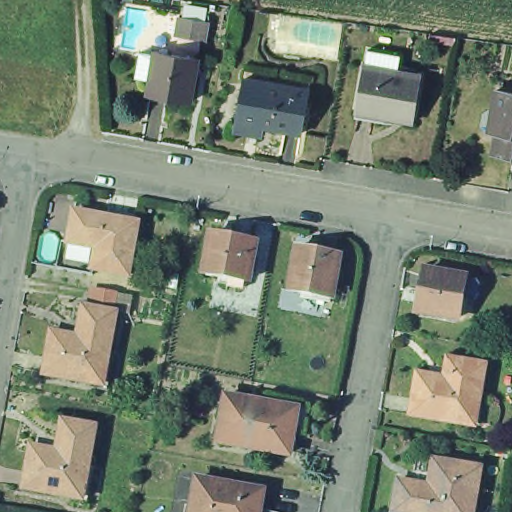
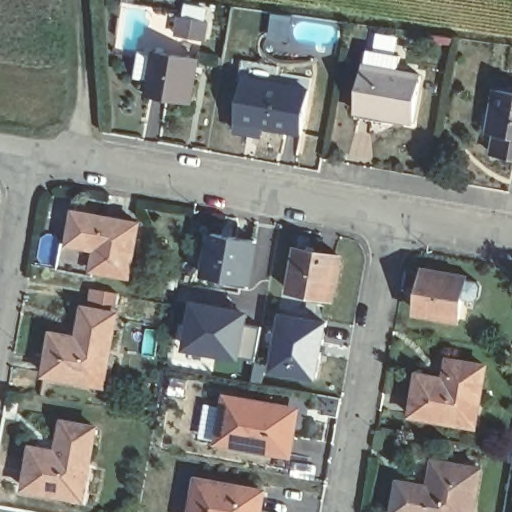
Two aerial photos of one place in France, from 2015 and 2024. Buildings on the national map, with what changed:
unchanged [(211,25),(207,43),(177,37),(182,19),(211,25)]
unchanged [(196,104),(153,96),(155,81),(141,78),(145,53),(161,56),(162,53),(204,61),(196,104)]
unchanged [(369,63),(401,69),(399,84),(421,88),(412,136),(355,125),(365,78),(366,78),(369,63)]
unchanged [(235,138),(237,128),(245,84),(246,74),(310,86),(309,96),(302,140),(264,133),(262,143),(235,138)]
unchanged [(512,97),(512,161),(491,157),(495,138),(487,136),(491,115),(495,93),(512,97)]
unchanged [(137,228),(127,281),(92,274),(95,254),(67,248),(72,216),(137,228)]
unchanged [(231,285),(211,281),(218,241),(259,248),(252,284),(251,289),(231,285)]
unchanged [(315,296),(294,292),(302,251),(342,258),(335,294),(335,299),(315,296)]
unchanged [(460,320),(419,313),(427,274),(462,280),(467,281),(464,299),(460,320)]
new [(194,298),(250,309),(247,322),(260,325),(255,358),(241,355),(240,359),(182,349),(194,298)]
new [(347,346),(319,343),(312,384),(260,374),(273,311),(352,325),(347,346)]
unchanged [(106,392),(48,381),(55,338),(82,343),(88,313),(120,319),(106,392)]
unchanged [(442,380),(446,360),(484,367),(472,427),(408,416),(415,375),(442,380)]
unchanged [(217,454),(225,409),(266,417),(267,413),(307,420),(302,443),(292,441),(289,466),(217,454)]
unchanged [(60,457),(66,427),(100,433),(85,505),(27,494),(35,453),(60,457)]
unchanged [(389,512),(394,488),(407,491),(412,465),(430,469),(475,477),(468,512),(389,512)]
unchanged [(267,492),(263,512),(196,512),(202,480),(267,492)]

